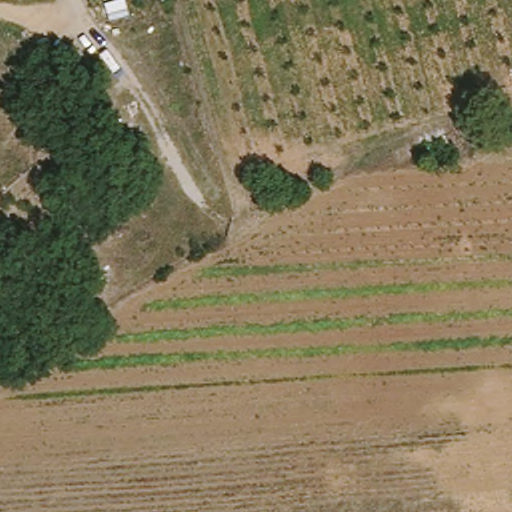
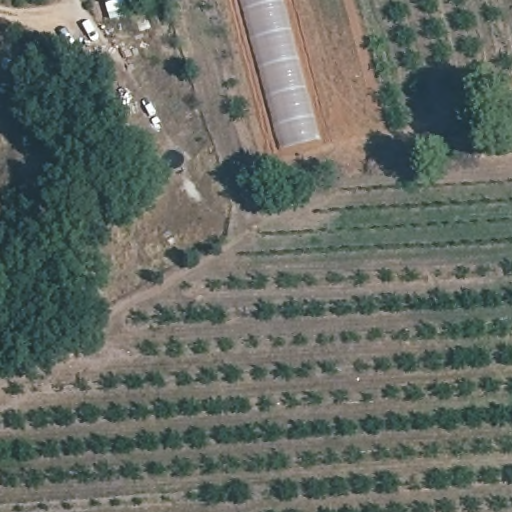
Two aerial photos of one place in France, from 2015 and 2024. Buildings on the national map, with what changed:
new [(279,149),(258,71),(238,0),(282,0),(319,139),(279,149)]

